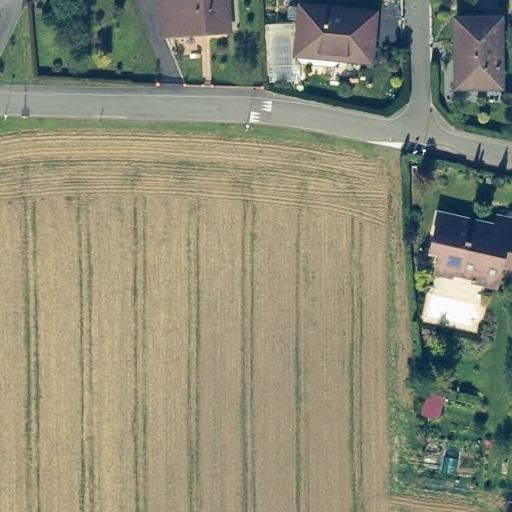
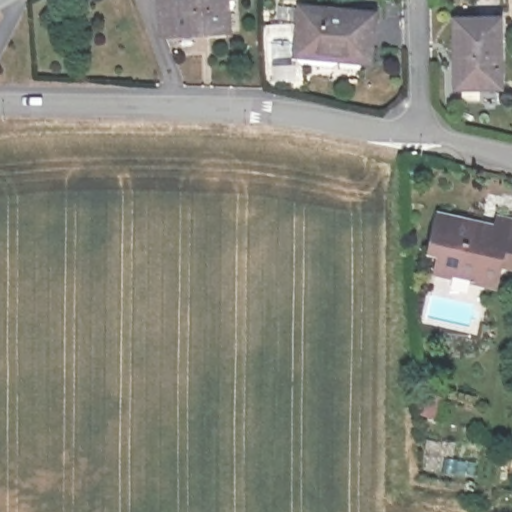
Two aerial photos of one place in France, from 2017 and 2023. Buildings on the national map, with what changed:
unchanged [(222,21),(162,26),(159,0),(220,0),(222,21)]
unchanged [(292,45),(298,5),(374,15),(367,64),(335,59),(291,52),(292,45)]
unchanged [(499,24),(501,52),(505,51),(504,90),(468,91),(467,65),(462,64),(460,25),(499,24)]
unchanged [(452,254),(440,250),(455,212),(507,224),(510,215),(512,216),(512,264),(507,263),(500,285),(446,272),(452,254)]

